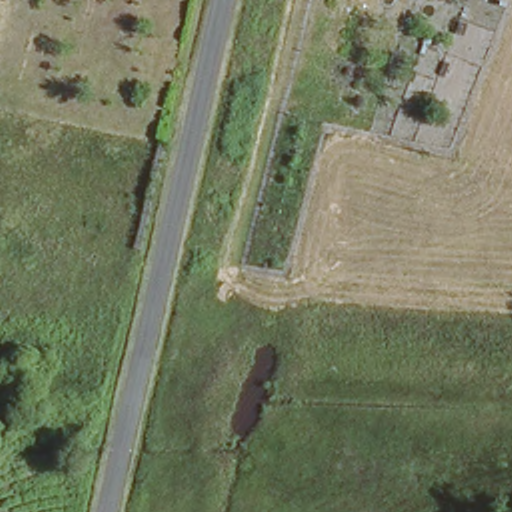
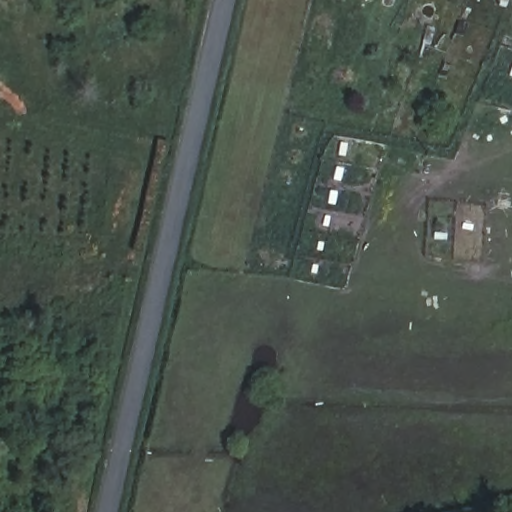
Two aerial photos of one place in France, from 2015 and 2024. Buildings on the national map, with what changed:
unchanged [(499,8),(501,4),(496,3),(497,0),(510,0),(506,9),(499,8)]

